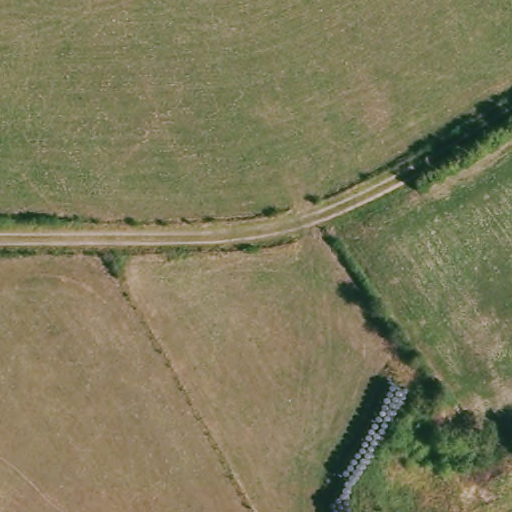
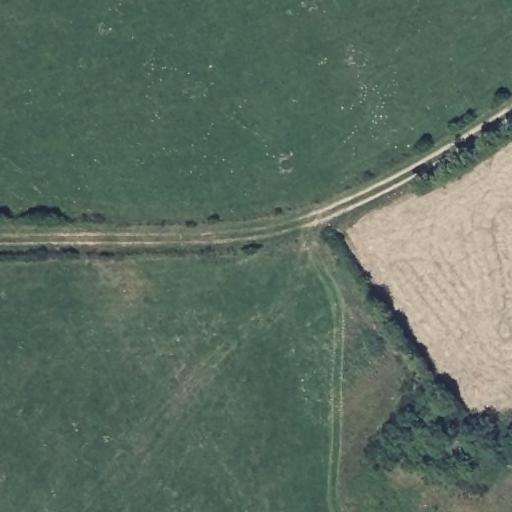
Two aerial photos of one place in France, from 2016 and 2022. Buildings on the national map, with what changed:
[]

